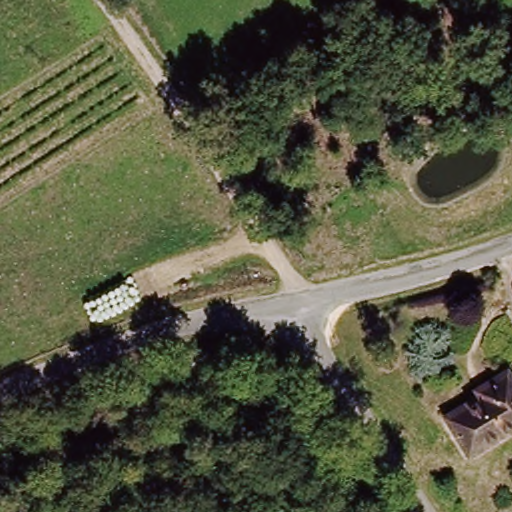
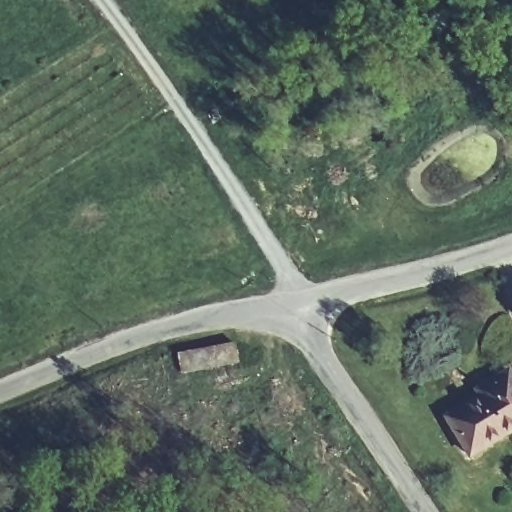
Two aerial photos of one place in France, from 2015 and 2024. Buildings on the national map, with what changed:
unchanged [(229,347),(233,369),(181,379),(176,357),(229,347)]
unchanged [(480,397),(476,391),(504,373),(512,386),(512,427),(466,456),(443,420),(480,397)]

